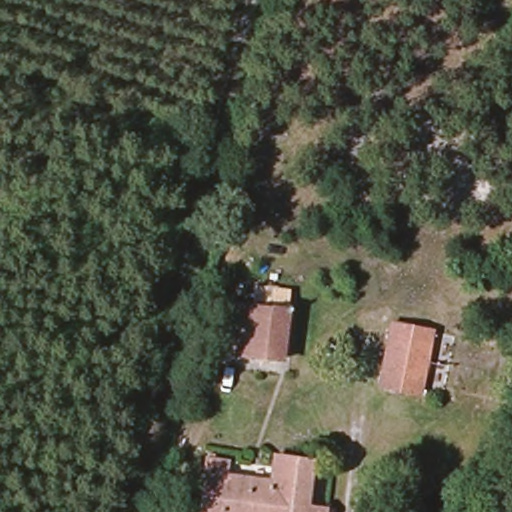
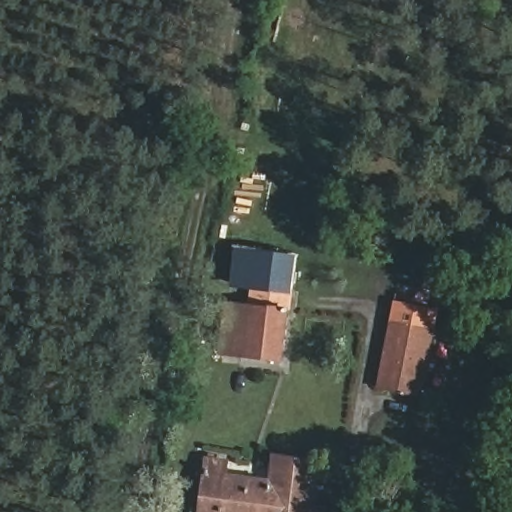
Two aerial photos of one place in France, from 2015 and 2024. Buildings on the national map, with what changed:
new [(250,287),(250,289),(230,286),(235,247),(296,254),(290,291),(250,287)]
unchanged [(281,364),(216,359),(225,305),(250,308),(250,287),(290,291),(281,364)]
unchanged [(420,394),(377,384),(390,331),(430,339),(420,394)]
unchanged [(231,464),(230,484),(276,490),(273,512),(200,512),(207,460),(231,464)]
unchanged [(306,512),(273,512),(276,490),(279,470),(311,475),(306,512)]

